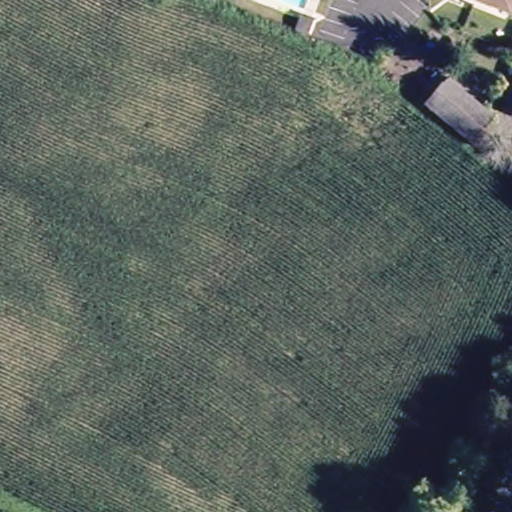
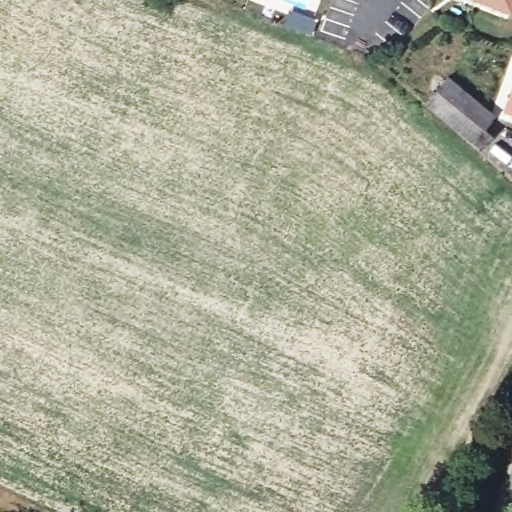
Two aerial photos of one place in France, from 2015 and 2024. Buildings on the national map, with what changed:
unchanged [(512,0),(512,1),(510,7),(492,0),(512,0)]
unchanged [(496,135),(484,151),(426,105),(447,78),(497,115),(486,129),(496,135)]

